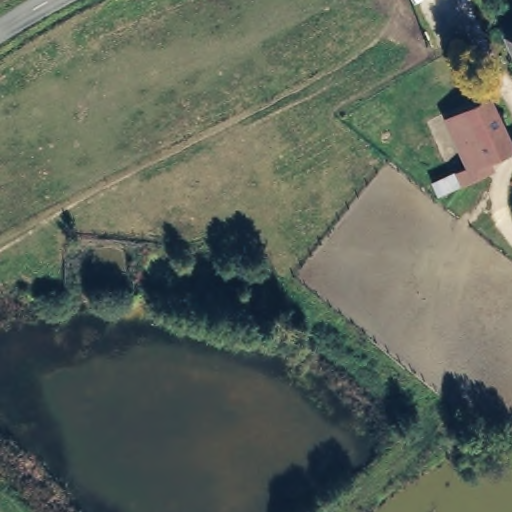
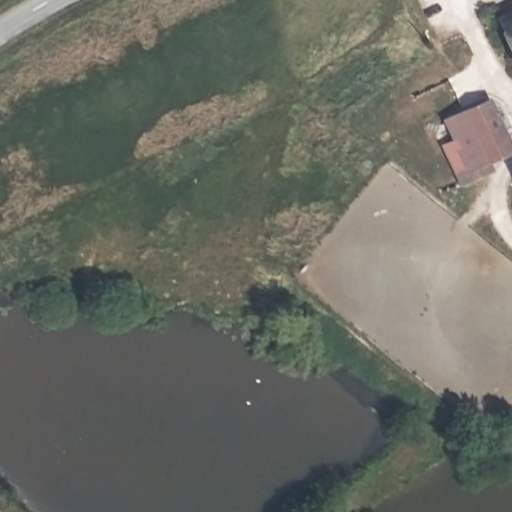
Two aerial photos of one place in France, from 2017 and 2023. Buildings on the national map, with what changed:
unchanged [(512,14),(512,54),(497,22),(512,14)]
unchanged [(465,177),(460,164),(471,159),(460,133),(451,113),(467,106),(488,96),(512,142),(512,144),(485,156),(490,165),(465,177)]

